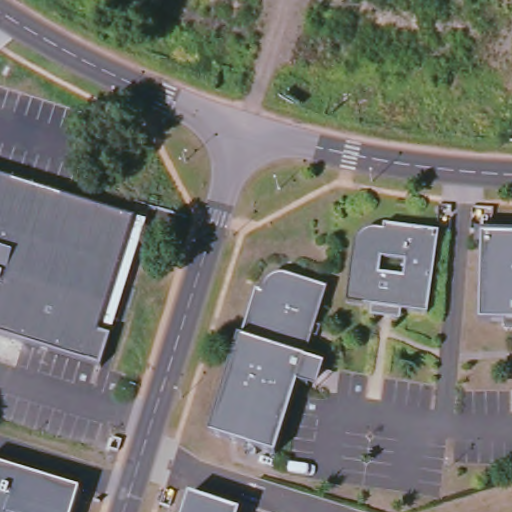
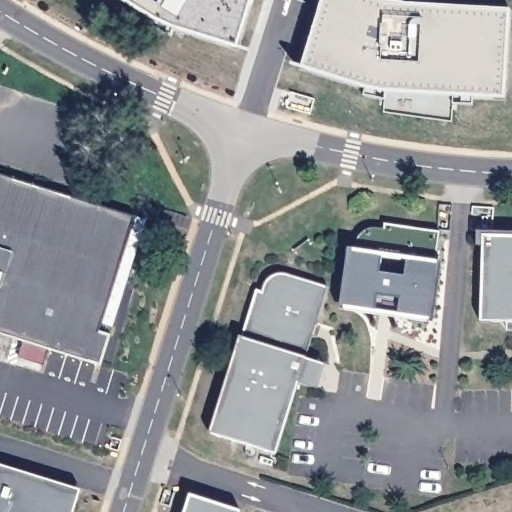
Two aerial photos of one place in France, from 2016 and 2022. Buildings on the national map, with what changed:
new [(236,49),(160,24),(120,0),(253,0),(236,49)]
new [(505,100),(383,93),(300,69),(323,0),(383,0),(388,2),(406,5),(510,11),(505,100)]
unchanged [(136,217),(100,331),(111,335),(101,367),(0,334),(0,174),(136,217)]
unchanged [(147,221),(111,335),(100,331),(136,217),(147,221)]
unchanged [(372,314),(373,306),(362,304),(347,302),(352,271),(356,244),(357,240),(358,238),(360,235),(363,232),(365,231),(369,229),(374,228),(379,229),(385,230),(385,224),(418,229),(441,233),(433,279),(428,314),(401,310),(400,318),(372,314)]
demolished [(512,324),(480,324),(483,237),(512,238),(512,324)]
unchanged [(317,387),(310,385),(300,382),(277,453),(211,432),(241,335),(244,336),(259,289),(265,291),(267,284),(270,280),(275,275),(277,274),(283,272),(290,273),(330,286),(308,357),(318,360),(325,362),(317,387)]
unchanged [(79,512),(0,512),(0,464),(85,491),(79,512)]
unchanged [(245,510),(244,512),(188,512),(193,494),(245,510)]

